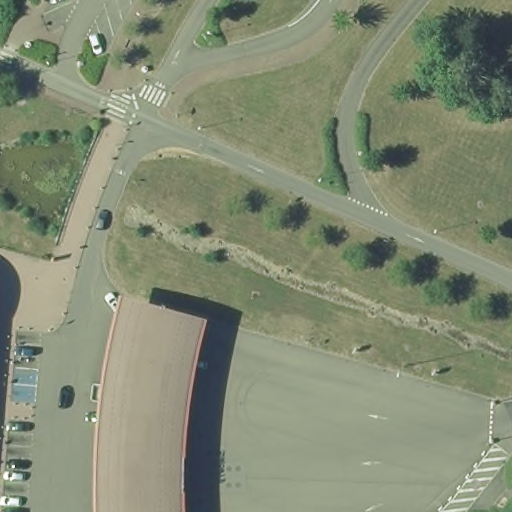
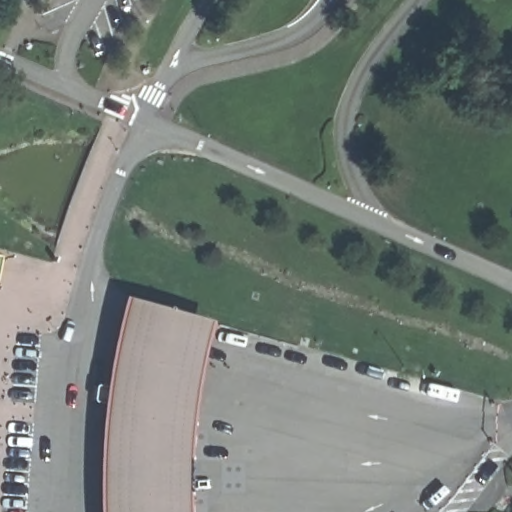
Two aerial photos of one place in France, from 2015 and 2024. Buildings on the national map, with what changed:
unchanged [(100,416),(106,354),(120,294),(208,316),(185,417),(182,466),(184,512),(96,512),(93,481),(100,416)]

